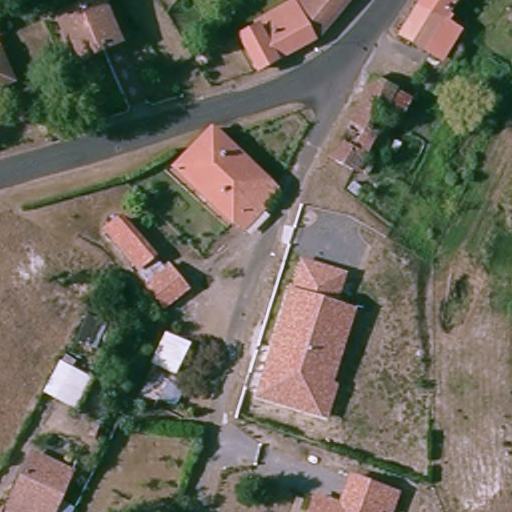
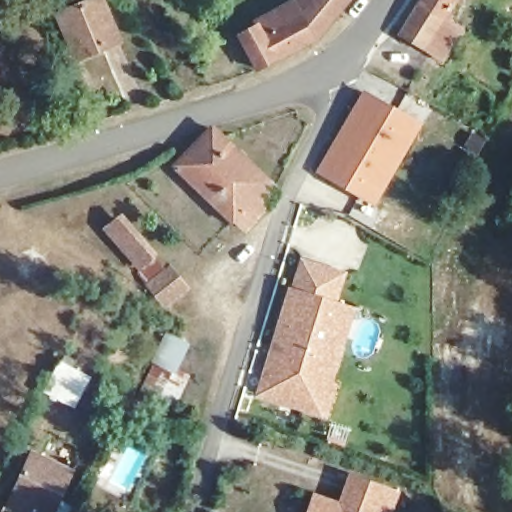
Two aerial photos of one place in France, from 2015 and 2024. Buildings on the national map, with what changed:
unchanged [(91,0),(96,0),(117,37),(119,39),(101,50),(75,65),(71,60),(69,55),(51,23),(91,0)]
unchanged [(258,80),(257,80),(240,49),(259,33),(256,31),(283,14),(294,25),(316,0),(353,0),(311,48),(258,80)]
unchanged [(316,0),(294,25),(283,14),(295,0),(316,0)]
unchanged [(420,46),(399,35),(407,20),(419,0),(447,0),(443,7),(436,18),(454,27),(440,56),(420,46)]
unchanged [(7,67),(0,72),(0,54),(7,67)]
demolished [(351,167),(330,156),(359,100),(361,101),(372,81),(394,91),(404,99),(391,119),(383,115),(355,162),(351,167)]
new [(421,124),(372,206),(314,171),(363,89),(421,124)]
unchanged [(216,132),(220,136),(270,184),(236,222),(181,172),(210,137),(216,132)]
unchanged [(165,315),(102,234),(124,215),(164,270),(172,265),(194,293),(165,315)]
unchanged [(299,258),(347,273),(340,302),(292,290),(299,258)]
unchanged [(357,306),(335,381),(340,382),(328,415),(257,395),(288,288),(357,306)]
unchanged [(161,413),(136,401),(167,333),(193,343),(161,413)]
unchanged [(62,362),(90,378),(73,406),(46,390),(62,362)]
unchanged [(60,512),(13,512),(14,509),(34,465),(73,483),(60,512)]
unchanged [(311,492),(338,502),(348,473),(400,490),(393,512),(305,512),(311,492)]

